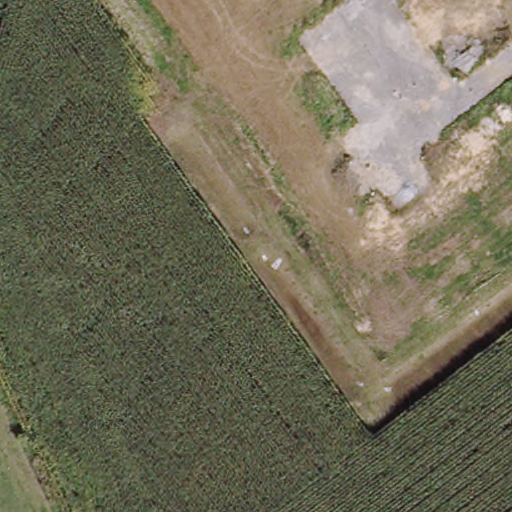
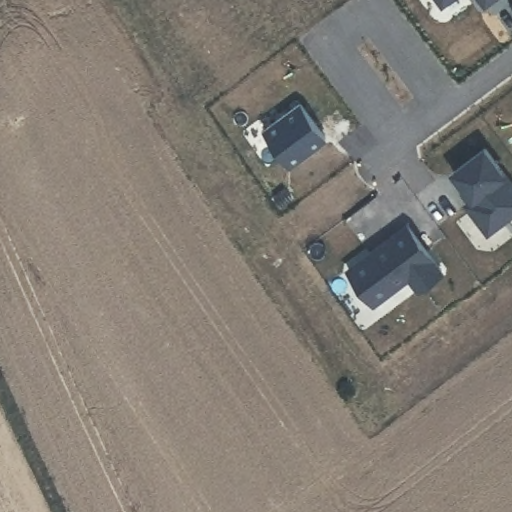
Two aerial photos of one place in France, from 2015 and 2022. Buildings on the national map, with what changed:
new [(443,4),(440,0),(448,0),(443,4)]
new [(485,5),(482,0),(491,0),(485,5)]
new [(328,142),(291,169),(262,131),(300,102),(328,142)]
new [(483,147),(512,185),(512,211),(486,231),(465,204),(472,199),(452,171),(483,147)]
new [(378,244),(406,224),(441,270),(417,287),(407,275),(372,302),(347,268),(368,252),(378,244)]

